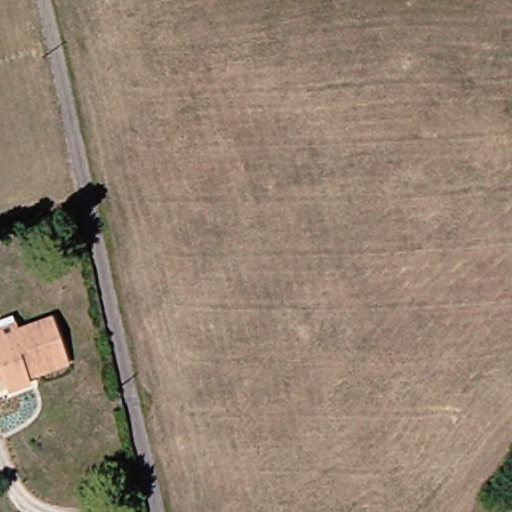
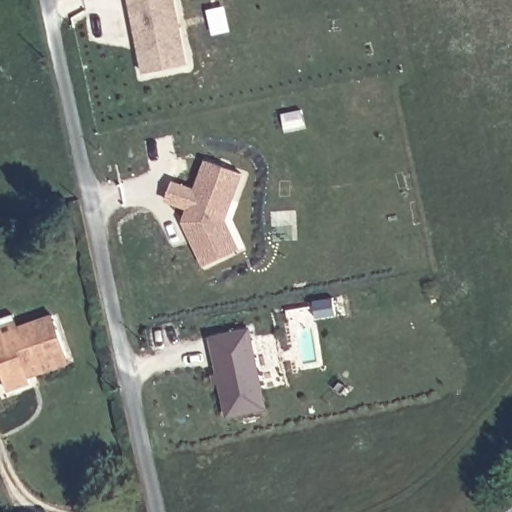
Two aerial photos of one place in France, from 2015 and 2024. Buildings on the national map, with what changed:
new [(173,0),(185,65),(144,72),(129,0),(173,0)]
new [(221,260),(204,268),(191,241),(182,224),(186,214),(188,210),(164,200),(170,183),(195,192),(205,161),(240,175),(222,221),(229,236),(237,252),(221,260)]
unchanged [(25,385),(5,391),(0,378),(0,312),(6,310),(10,323),(11,329),(46,318),(60,357),(61,363),(22,376),(25,385)]
new [(246,330),(263,410),(225,417),(209,337),(246,330)]

